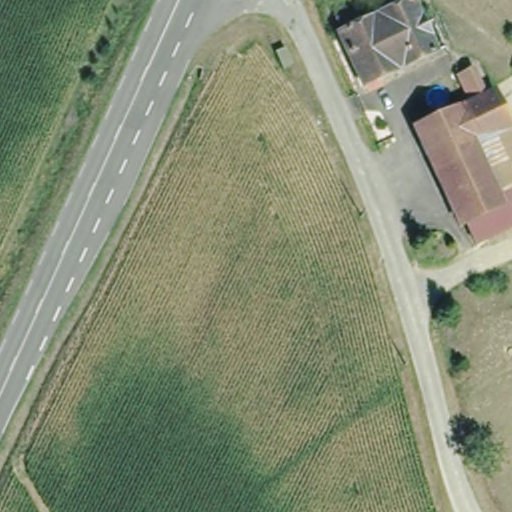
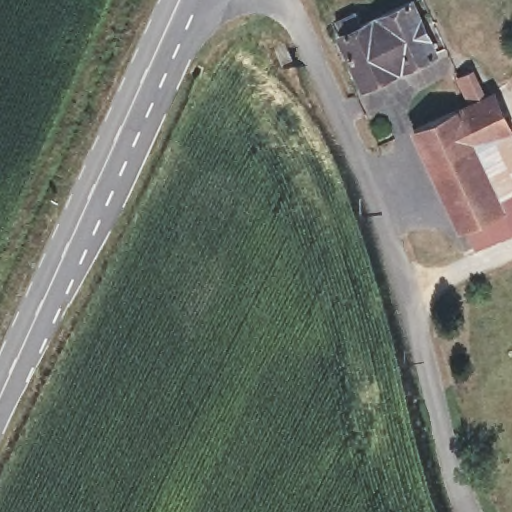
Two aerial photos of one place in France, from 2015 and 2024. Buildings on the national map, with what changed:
unchanged [(343,35),(347,32),(342,21),(359,12),(364,24),(414,0),(418,0),(438,55),(383,80),(365,89),(361,78),(343,35)]
unchanged [(503,125),(458,145),(488,208),(459,221),(451,225),(405,125),(462,99),(450,72),(461,66),(476,93),(487,88),(503,125)]
unchanged [(488,208),(458,145),(503,125),(512,145),(512,221),(467,242),(459,221),(488,208)]

